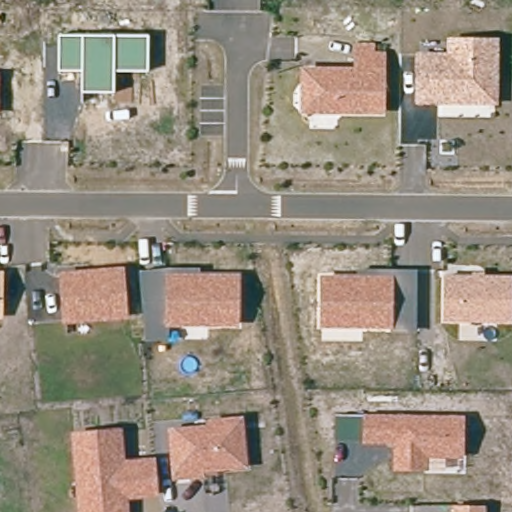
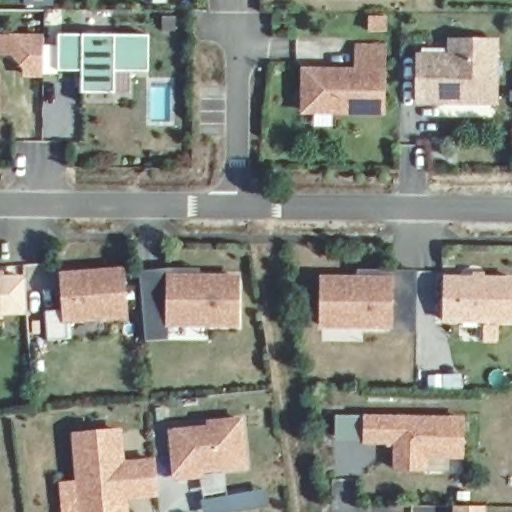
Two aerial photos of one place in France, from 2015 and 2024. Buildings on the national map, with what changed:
new [(42,34),(43,78),(23,78),(24,69),(13,56),(0,56),(0,34),(42,34)]
unchanged [(81,94),(80,73),(58,72),(57,35),(149,35),(149,74),(115,74),(115,94),(81,94)]
unchanged [(414,105),(413,54),(446,54),(446,38),(499,40),(499,106),(414,105)]
unchanged [(300,114),(301,69),(355,69),(354,43),(374,43),(375,53),(386,53),(385,114),(300,114)]
unchanged [(1,115),(0,116),(0,74),(1,115)]
unchanged [(58,272),(124,268),(128,320),(63,325),(58,272)]
unchanged [(138,269),(200,268),(200,273),(241,274),(239,328),(168,329),(167,343),(144,342),(138,269)]
unchanged [(318,277),(355,276),(355,270),(417,272),(417,334),(389,335),(389,330),(318,329),(318,277)]
unchanged [(3,272),(3,320),(0,320),(0,272),(3,272)]
unchanged [(443,275),(512,277),(512,323),(443,323),(443,275)]
unchanged [(361,414),(464,417),(464,459),(428,460),(428,473),(392,473),(392,446),(361,446),(361,414)]
unchanged [(168,428),(206,426),(206,419),(243,417),(248,471),(204,474),(204,481),(171,481),(168,428)]
unchanged [(70,433),(122,429),(125,461),(155,458),(158,498),(129,501),(130,512),(77,512),(70,433)]
unchanged [(452,507),(486,508),(486,512),(452,512),(452,507)]

